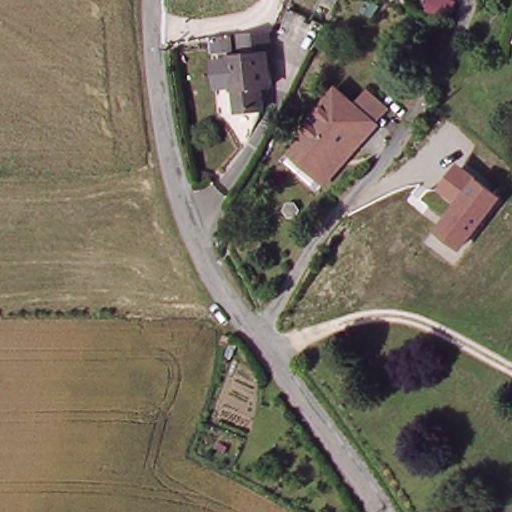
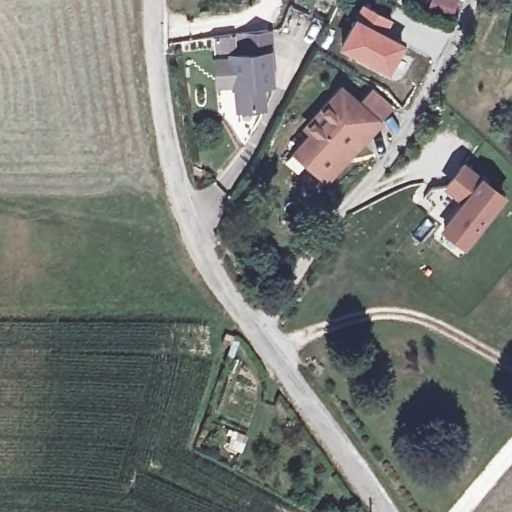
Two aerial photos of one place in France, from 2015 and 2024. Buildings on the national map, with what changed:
unchanged [(326,0),(351,0),(343,14),(324,3),(326,0)]
new [(458,0),(462,2),(454,19),(426,9),(430,0),(458,0)]
new [(361,3),(393,19),(386,32),(403,43),(387,73),(338,46),(361,3)]
unchanged [(262,85),(264,111),(236,113),(233,84),(231,85),(230,55),(239,55),(238,38),(274,34),(273,52),(275,83),(262,85)]
unchanged [(298,161),(292,155),(307,139),(341,102),(352,114),(365,100),(384,119),(371,132),(356,149),(323,184),(317,179),(298,161)]
unchanged [(461,183),(487,188),(481,219),(456,214),(461,183)]

